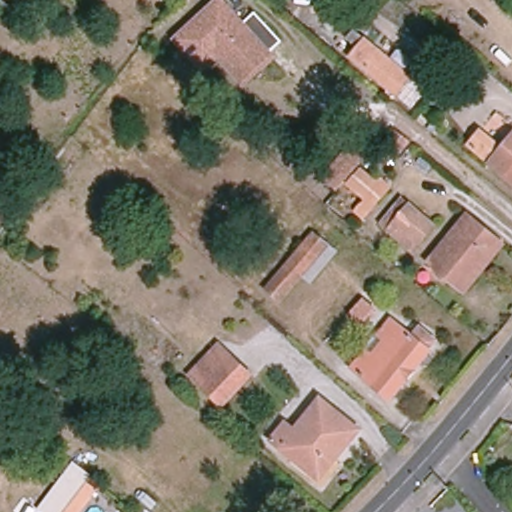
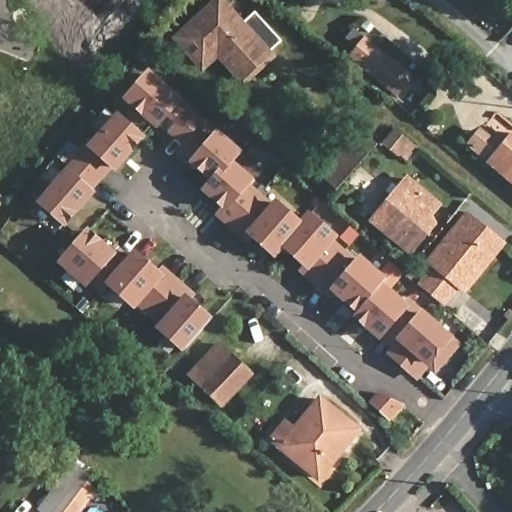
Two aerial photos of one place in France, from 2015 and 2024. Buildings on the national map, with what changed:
unchanged [(217,60),(203,73),(173,38),(216,0),(227,0),(246,20),(256,11),(282,40),(272,49),(279,56),(246,89),(217,60)]
unchanged [(410,79),(396,95),(351,57),(359,48),(349,40),(354,33),(364,41),(365,41),(410,79)]
new [(148,76),(204,125),(187,145),(172,133),(180,124),(168,114),(157,126),(127,100),(148,76)]
new [(140,140),(114,169),(110,165),(99,179),(76,159),(87,145),(91,149),(116,120),(140,140)]
new [(187,145),(204,125),(238,155),(231,163),(215,182),(195,165),(193,167),(178,155),(187,145)]
unchanged [(463,146),(479,128),(500,147),(511,134),(512,134),(512,186),(485,165),(463,146)]
new [(362,136),(375,148),(355,171),(339,190),(326,178),(342,160),(362,136)]
unchanged [(410,151),(415,146),(422,139),(427,144),(421,151),(416,157),(410,151)]
new [(99,179),(87,192),(90,195),(64,225),(40,205),(67,174),(64,172),(76,159),(99,179)]
new [(215,182),(231,163),(251,180),(245,187),(259,199),(233,229),(219,216),(226,210),(206,192),(215,182)]
new [(365,168),(384,185),(369,202),(350,186),(365,168)]
new [(432,225),(412,250),(376,219),(409,179),(438,204),(425,220),(432,225)]
new [(251,236),(247,240),(233,229),(259,199),(272,210),(276,206),(300,227),(283,247),(275,257),(262,246),(258,242),(251,236)]
unchanged [(358,212),(366,202),(372,207),(364,217),(358,212)]
demolished [(384,230),(404,206),(427,225),(407,250),(384,230)]
unchanged [(496,240),(458,286),(429,263),(467,216),(496,240)]
new [(283,247),(300,227),(309,217),(333,239),(329,243),(343,255),(317,284),(303,272),(307,268),(300,261),(295,257),(283,247)]
new [(103,240),(108,245),(115,251),(121,245),(135,257),(109,286),(103,293),(90,281),(86,286),(62,265),(92,230),(103,240)]
demolished [(308,230),(321,241),(276,296),(263,285),(308,230)]
new [(334,291),(330,296),(317,284),(343,255),(355,266),(359,261),(384,283),(381,287),(358,312),(346,302),(342,298),(334,291)]
new [(147,267),(151,271),(159,277),(162,273),(176,285),(152,313),(139,302),(134,307),(109,286),(135,257),(147,267)]
new [(161,330),(165,325),(152,313),(176,285),(190,298),(187,302),(191,306),(198,312),(210,323),(184,351),(161,330)]
new [(381,287),(404,307),(408,303),(422,315),(396,345),(383,333),(379,337),(355,316),(381,287)]
new [(427,364),(416,377),(389,353),(395,346),(396,345),(422,315),(456,345),(440,365),(435,370),(427,364)]
demolished [(413,338),(420,330),(434,341),(427,350),(429,352),(391,399),(353,368),(391,321),(413,338)]
unchanged [(222,406),(190,377),(218,347),(250,376),(222,406)]
unchanged [(294,432),(320,400),(359,430),(333,463),(329,460),(315,477),(271,442),(285,425),(294,432)]
unchanged [(40,505),(74,461),(90,474),(86,479),(98,487),(80,512),(50,512),(40,505)]

